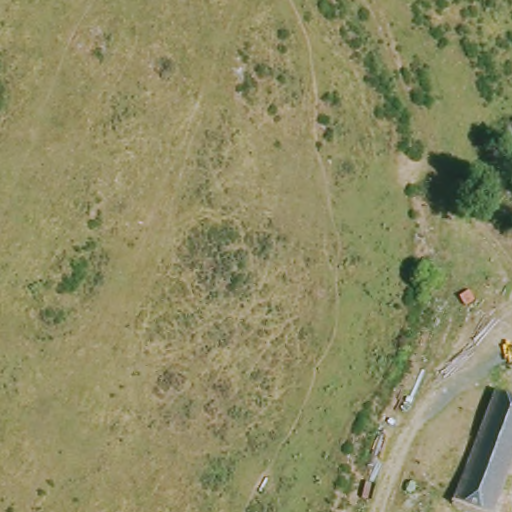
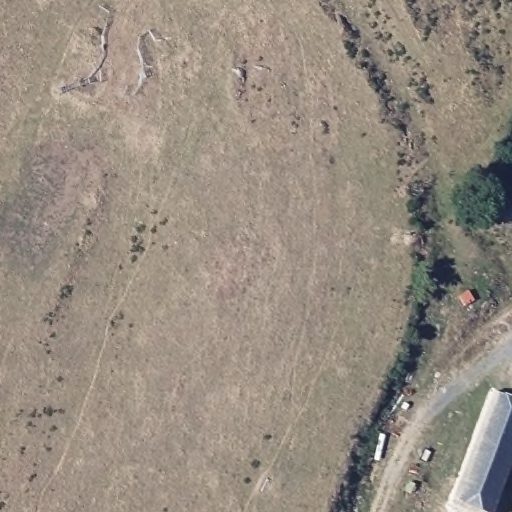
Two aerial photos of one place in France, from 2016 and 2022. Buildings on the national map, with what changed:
unchanged [(512,400),(512,454),(491,512),(465,512),(449,506),(490,392),(512,400)]

